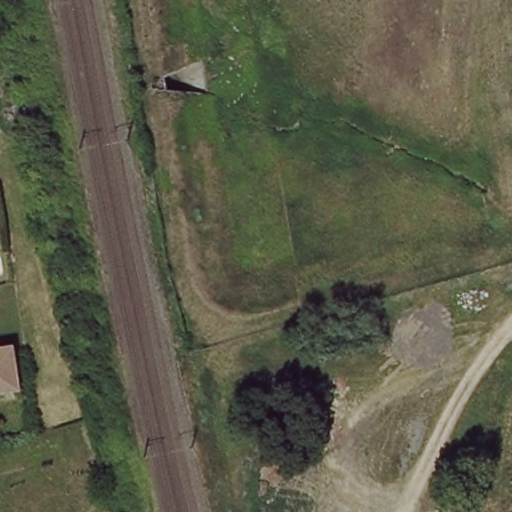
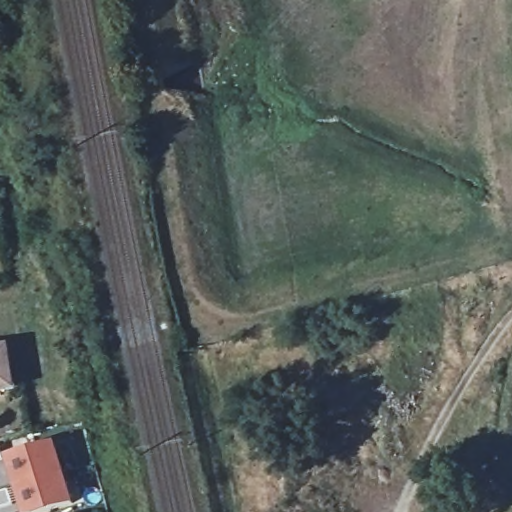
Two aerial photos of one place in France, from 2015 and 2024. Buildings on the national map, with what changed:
unchanged [(6,352),(10,381),(16,380),(18,390),(0,393),(0,353),(6,352)]
new [(18,485),(9,456),(53,443),(62,472),(18,485)]
new [(25,512),(18,485),(62,472),(71,501),(34,512),(25,512)]

